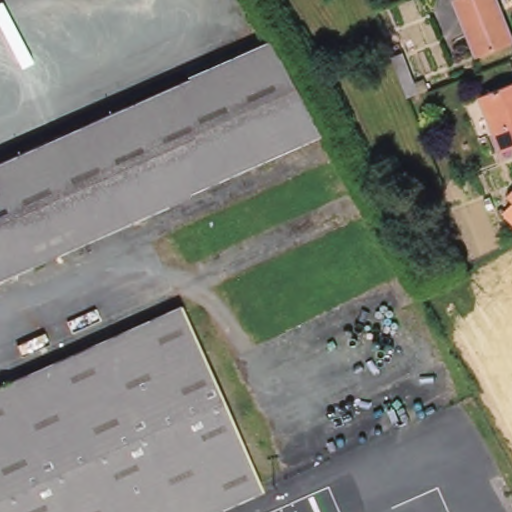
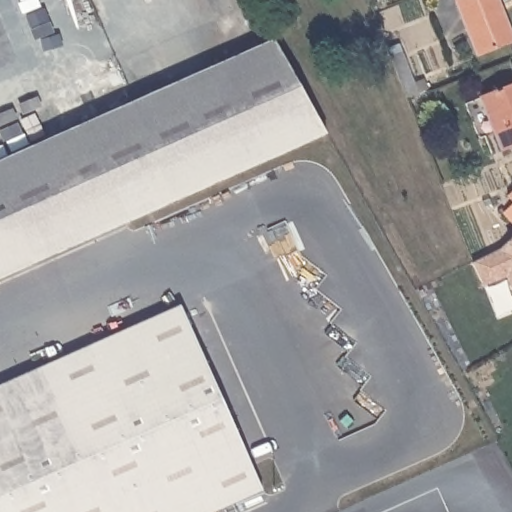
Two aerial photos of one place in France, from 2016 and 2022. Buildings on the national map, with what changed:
unchanged [(474,49),(455,0),(497,0),(511,34),(474,49)]
unchanged [(0,277),(0,159),(269,32),(285,61),(286,63),(311,111),(319,125),(0,277)]
unchanged [(434,98),(423,102),(407,61),(418,57),(434,98)]
unchanged [(482,97),(512,86),(512,147),(503,151),(482,97)]
new [(512,190),(512,202),(506,195),(512,190)]
new [(512,203),(512,222),(503,212),(512,203)]
new [(482,284),(473,262),(509,244),(506,241),(512,236),(512,289),(506,276),(482,284)]
unchanged [(181,305),(217,389),(260,487),(204,512),(0,512),(0,385),(181,305)]

